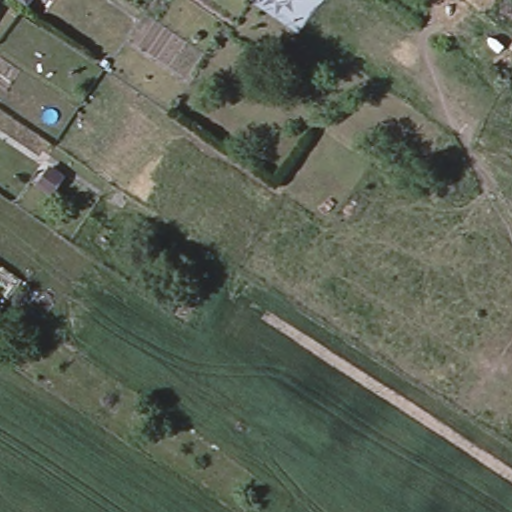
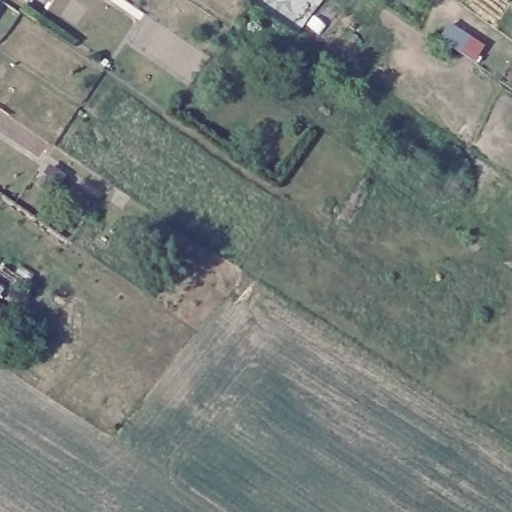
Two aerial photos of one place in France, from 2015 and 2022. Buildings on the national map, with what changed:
unchanged [(6,308),(0,317),(0,304),(6,308)]

